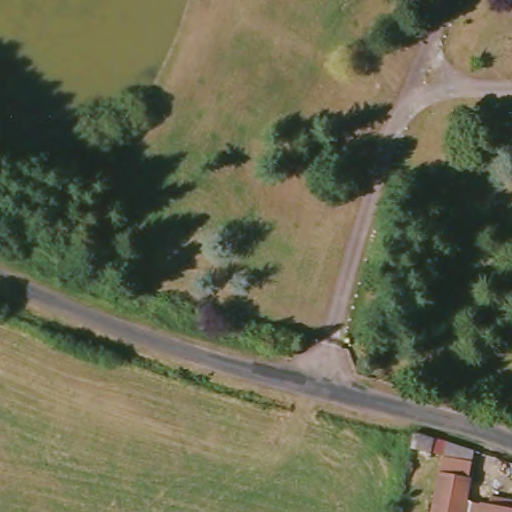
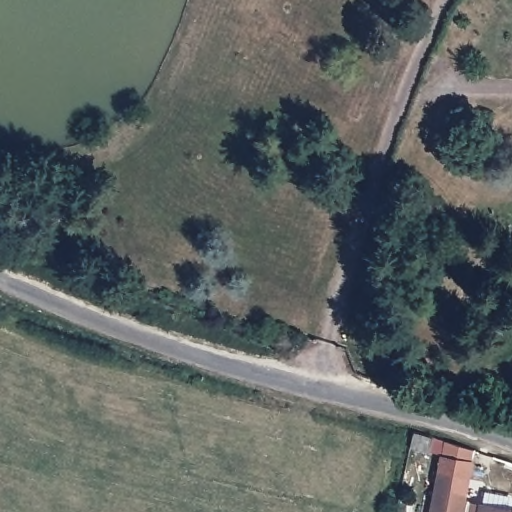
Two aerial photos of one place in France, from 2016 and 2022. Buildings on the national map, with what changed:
unchanged [(461,456),(449,512),(422,512),(435,450),(461,456)]
unchanged [(512,508),(512,512),(453,512),(456,497),(512,508)]

